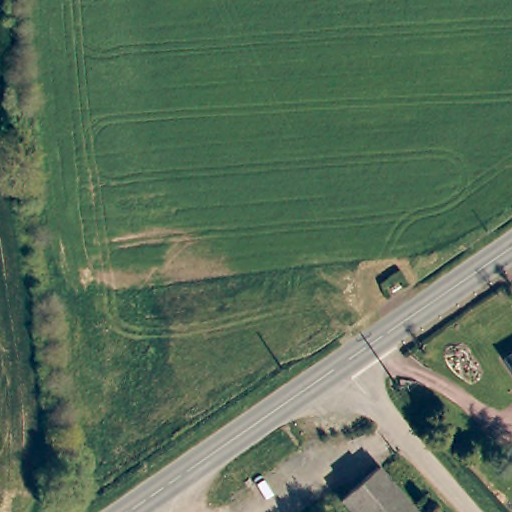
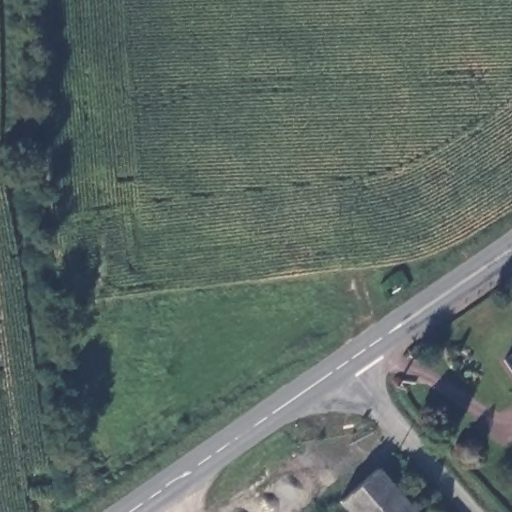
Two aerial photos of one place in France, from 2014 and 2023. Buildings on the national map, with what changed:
unchanged [(502,362),(512,355),(512,376),(502,362)]
unchanged [(377,470),(413,512),(347,512),(337,500),(377,470)]

